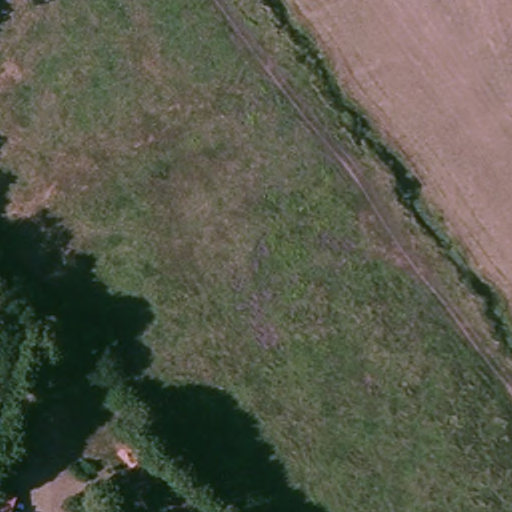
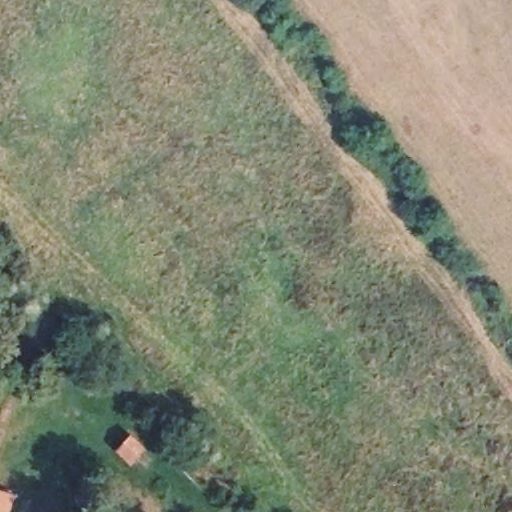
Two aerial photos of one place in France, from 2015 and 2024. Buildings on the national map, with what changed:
unchanged [(0,512),(0,500),(17,506),(15,512),(0,512)]

